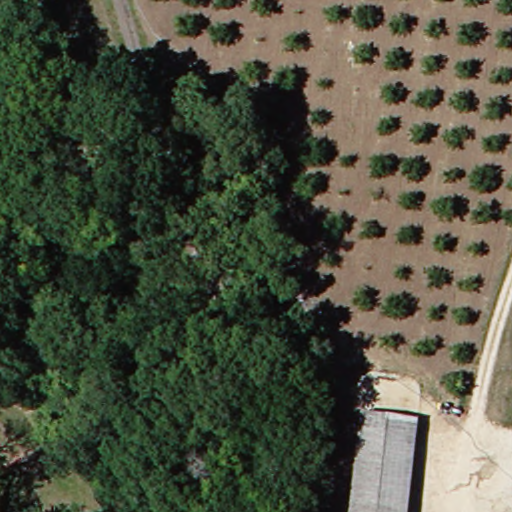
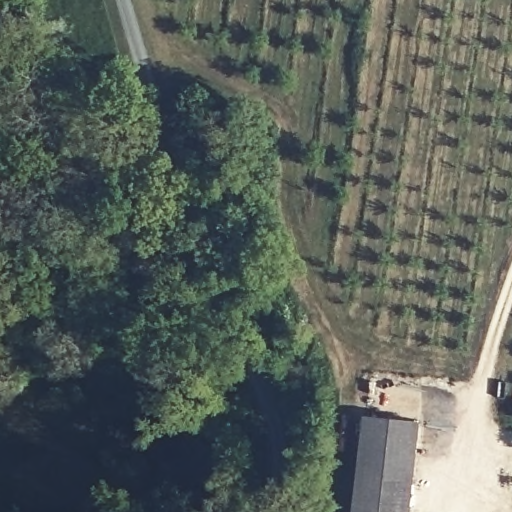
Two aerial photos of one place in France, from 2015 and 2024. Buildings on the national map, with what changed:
unchanged [(357,422),(412,428),(402,512),(348,512),(357,422)]

